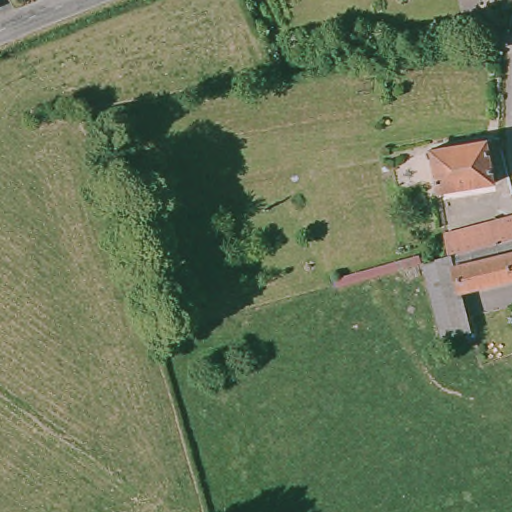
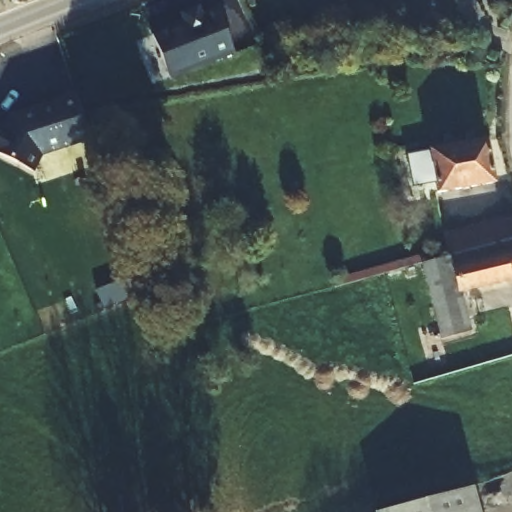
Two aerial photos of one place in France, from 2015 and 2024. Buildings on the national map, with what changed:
new [(176,27),(176,30),(186,26),(183,16),(199,9),(203,20),(220,13),(236,53),(170,78),(153,35),(176,27)]
new [(91,139),(41,154),(33,172),(0,154),(0,126),(3,128),(10,116),(58,101),(58,99),(76,92),(91,139)]
unchanged [(488,139),(496,182),(438,192),(430,150),(488,139)]
unchanged [(449,261),(445,237),(512,219),(512,244),(502,247),(449,261)]
unchanged [(424,271),(424,268),(449,261),(502,247),(512,244),(512,283),(462,296),(472,335),(443,342),(424,271)]
new [(336,277),(420,256),(422,263),(338,286),(336,277)]
new [(479,512),(376,512),(473,487),(479,512)]

